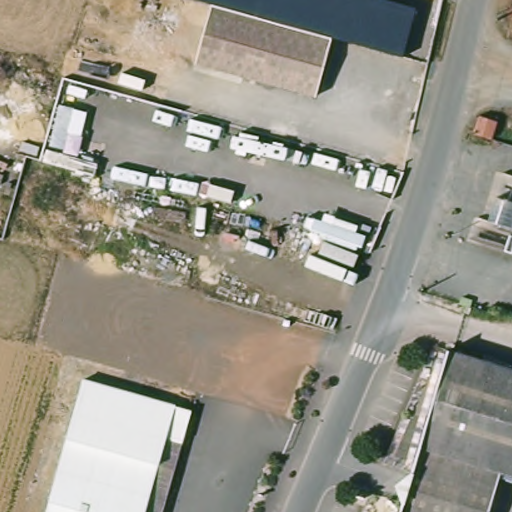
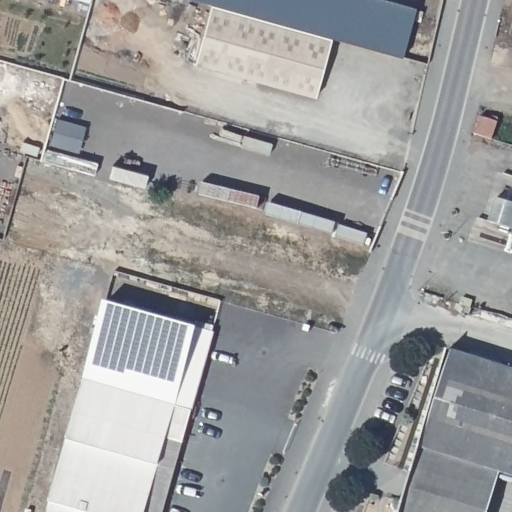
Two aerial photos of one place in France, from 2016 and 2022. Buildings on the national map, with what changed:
unchanged [(213,2),(205,0),(386,0),(416,8),(405,54),(334,37),(213,2)]
unchanged [(334,37),(319,92),(199,59),(213,2),(334,37)]
unchanged [(489,124),(484,145),(468,140),(472,119),(489,124)]
unchanged [(512,209),(512,227),(509,235),(483,226),(489,202),(512,209)]
new [(104,300),(195,326),(213,333),(192,409),(84,379),(104,300)]
unchanged [(501,476),(478,469),(421,454),(449,356),(512,374),(512,479),(501,476)]
unchanged [(44,512),(82,378),(192,409),(161,512),(44,512)]
unchanged [(501,476),(491,512),(403,512),(421,454),(478,469),(501,476)]

